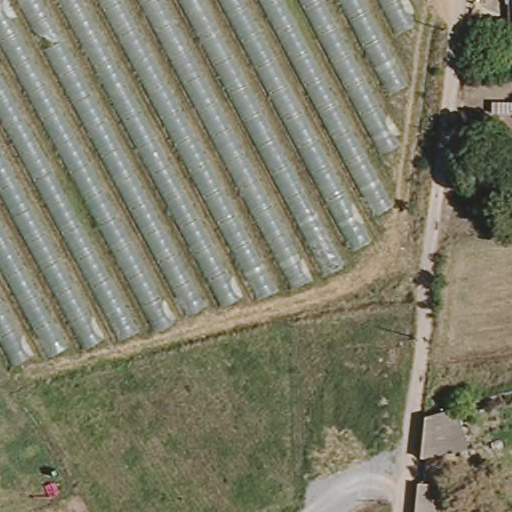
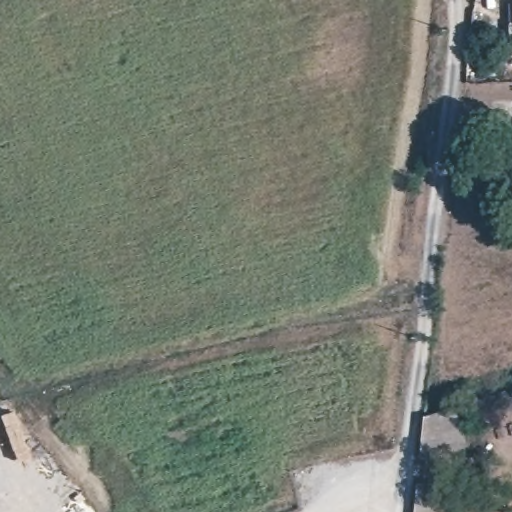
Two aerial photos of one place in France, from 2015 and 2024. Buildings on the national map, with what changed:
demolished [(383,260),(18,364),(1,335),(0,333),(0,0),(411,0),(383,260)]
unchanged [(497,100),(512,100),(512,121),(498,121),(497,100)]
unchanged [(468,450),(419,457),(423,420),(457,411),(456,405),(478,399),(483,416),(461,423),(465,441),(468,450)]
unchanged [(444,495),(442,512),(419,512),(421,493),(444,495)]

